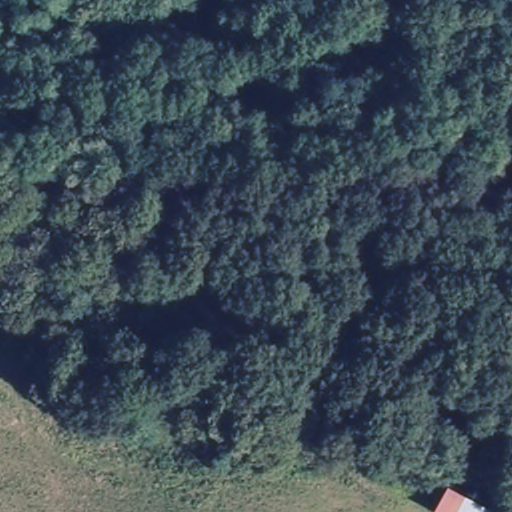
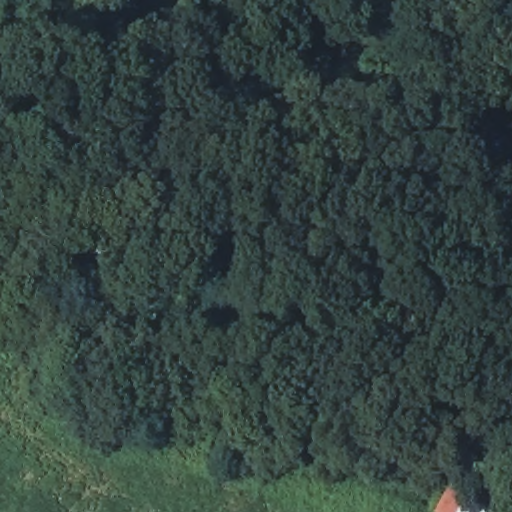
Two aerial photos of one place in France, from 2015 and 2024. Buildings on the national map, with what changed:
unchanged [(445,487),(491,512),(431,512),(445,487)]

